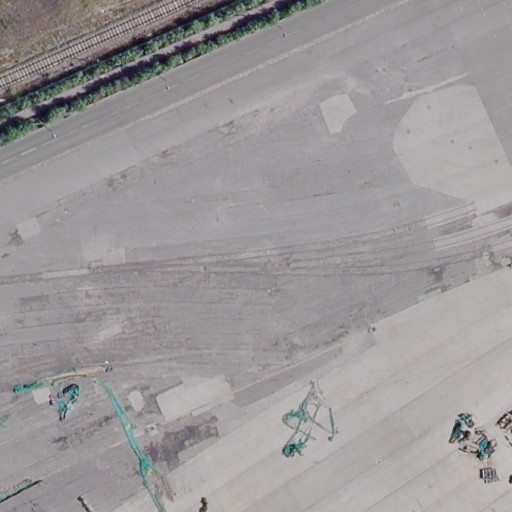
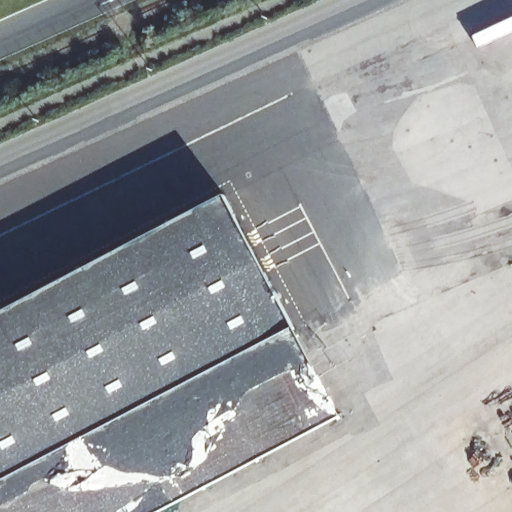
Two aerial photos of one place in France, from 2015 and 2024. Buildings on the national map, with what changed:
new [(231,197),(349,420),(174,512),(0,512),(0,317),(231,197)]

